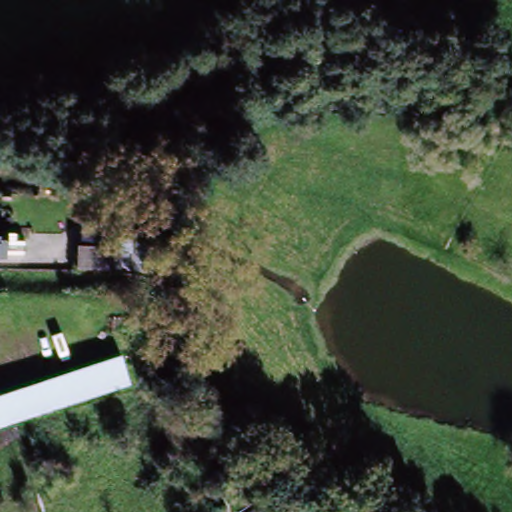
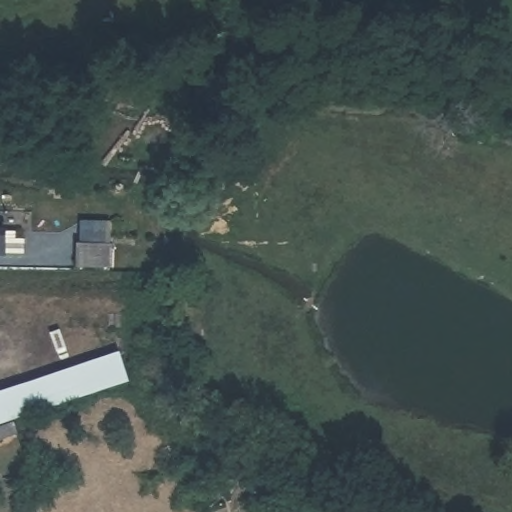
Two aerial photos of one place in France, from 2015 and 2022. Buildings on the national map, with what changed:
unchanged [(11,244),(0,244),(0,221),(10,220),(11,244)]
unchanged [(122,377),(0,422),(0,393),(113,351),(122,377)]

